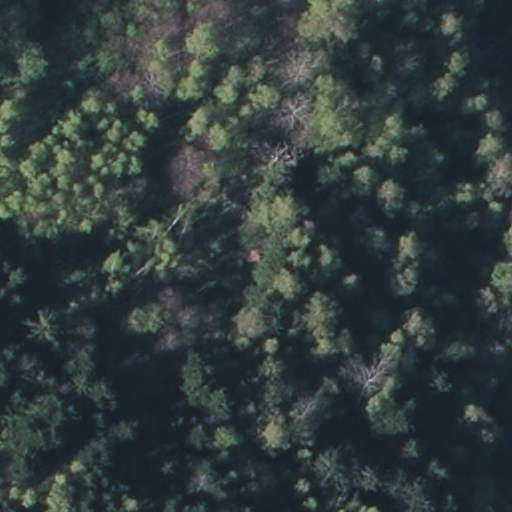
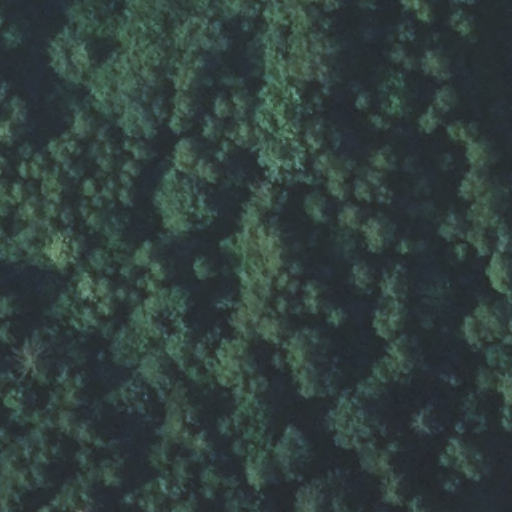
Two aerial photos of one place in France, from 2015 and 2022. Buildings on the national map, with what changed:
[]

